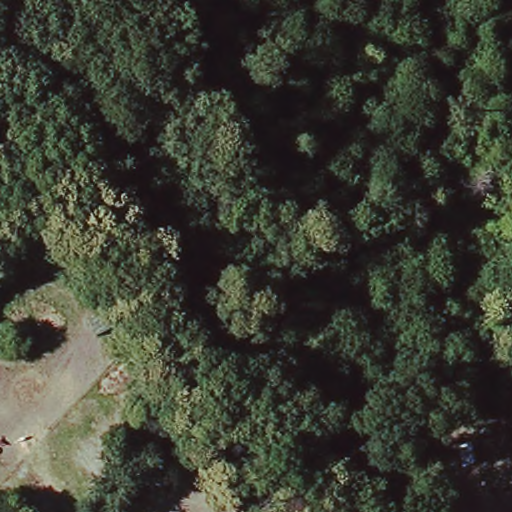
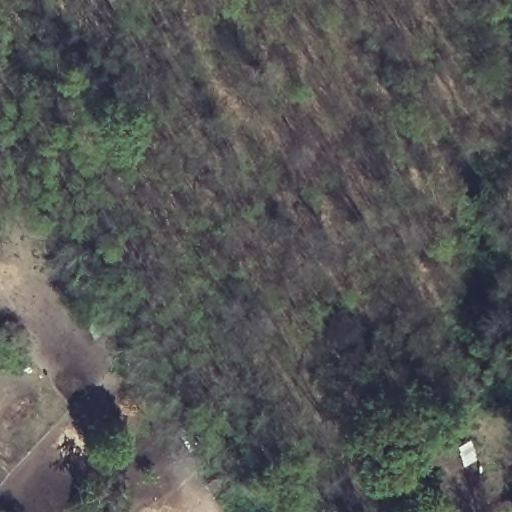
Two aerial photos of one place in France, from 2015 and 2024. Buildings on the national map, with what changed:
[]

